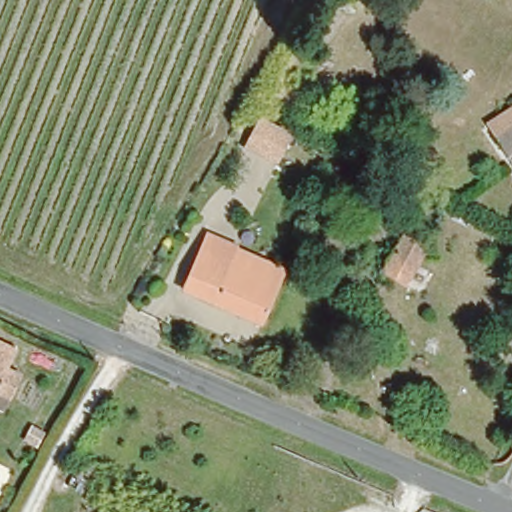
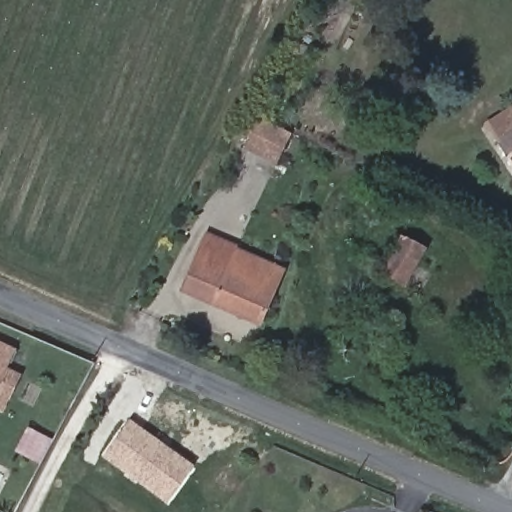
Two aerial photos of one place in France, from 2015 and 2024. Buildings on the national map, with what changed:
unchanged [(245,147),(258,120),(292,137),(278,164),(245,147)]
unchanged [(512,129),(512,174),(490,141),(512,129)]
unchanged [(381,272),(400,240),(426,255),(406,287),(381,272)]
unchanged [(175,292),(191,254),(216,265),(224,249),(275,272),(250,325),(175,292)]
unchanged [(283,249),(295,254),(285,277),(275,272),(283,249)]
unchanged [(0,405),(0,346),(15,353),(10,365),(25,370),(11,397),(6,408),(0,405)]
new [(102,456),(130,419),(194,465),(166,503),(102,456)]

